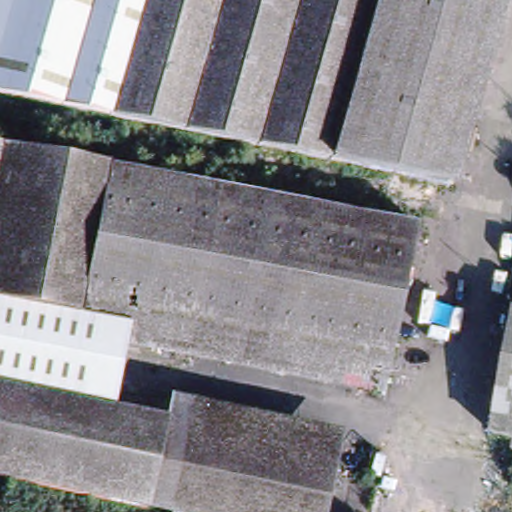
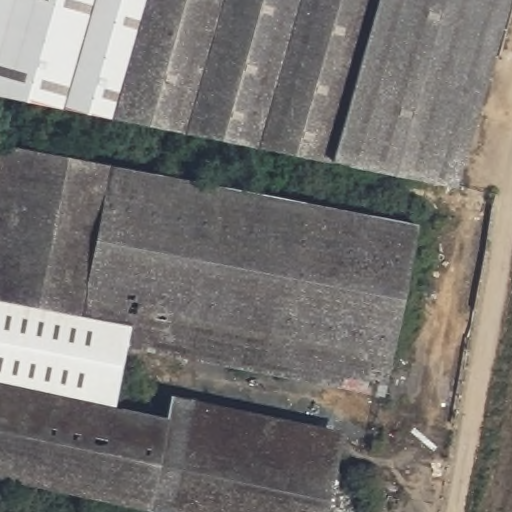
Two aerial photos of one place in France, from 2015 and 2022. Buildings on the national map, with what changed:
unchanged [(450,188),(61,109),(17,101),(0,98),(0,0),(503,0),(450,188)]
unchanged [(165,393),(342,432),(325,512),(146,512),(0,481),(0,143),(415,224),(380,397),(126,342),(120,381),(115,407),(162,414),(165,393)]
demolished [(512,439),(487,434),(510,311),(512,311),(512,439)]

